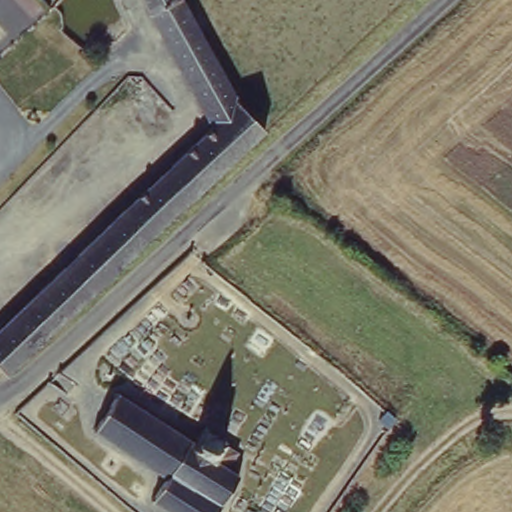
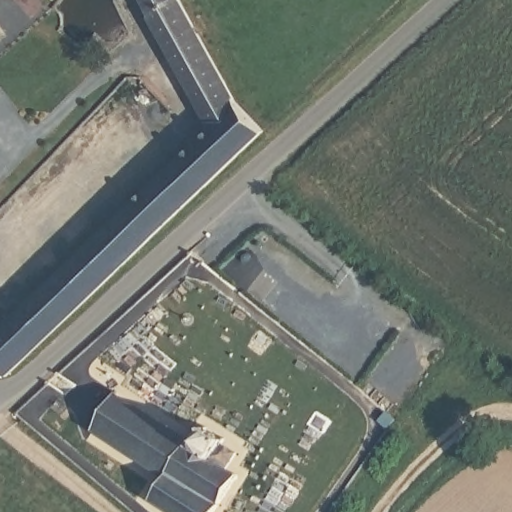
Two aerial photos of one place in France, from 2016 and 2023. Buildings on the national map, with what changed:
unchanged [(266,134),(12,380),(0,367),(0,342),(1,344),(215,135),(145,0),(188,0),(239,105),(266,134)]
unchanged [(116,396),(194,448),(204,434),(240,458),(231,472),(240,480),(218,512),(167,512),(154,503),(167,483),(92,432),(116,396)]
unchanged [(397,450),(407,437),(418,445),(408,458),(397,450)]

